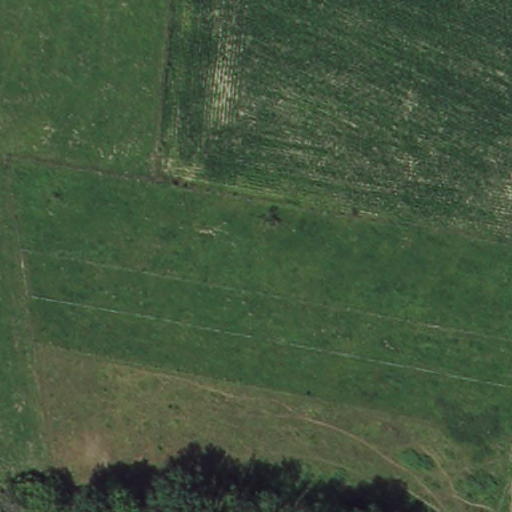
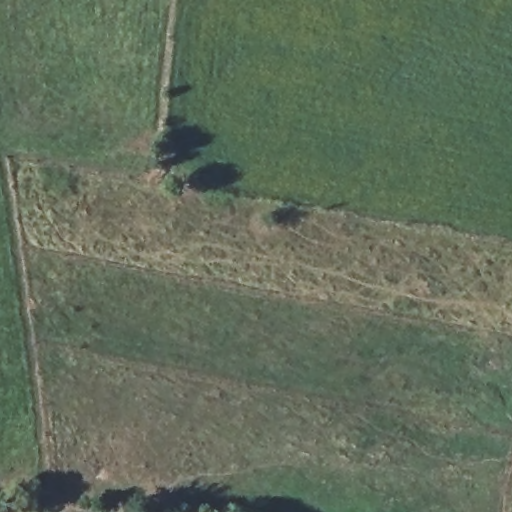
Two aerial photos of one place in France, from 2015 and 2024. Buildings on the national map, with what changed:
[]

